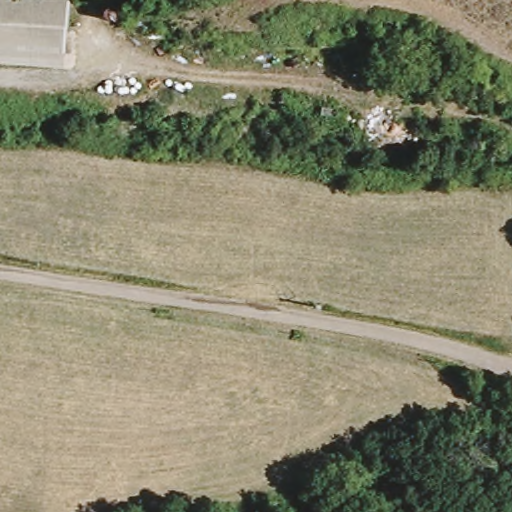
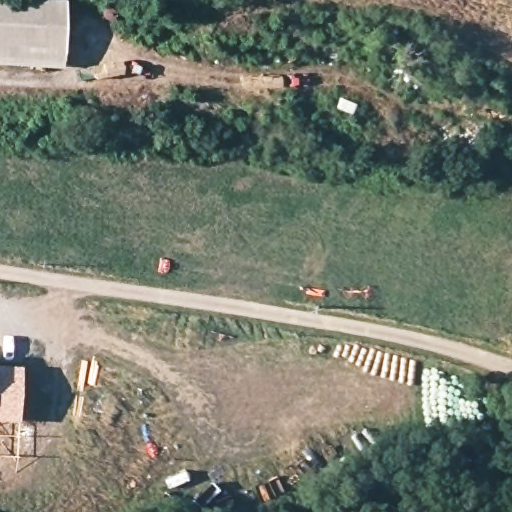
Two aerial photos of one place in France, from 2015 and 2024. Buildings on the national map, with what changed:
unchanged [(65,66),(0,63),(0,0),(52,0),(69,1),(65,66)]
new [(22,422),(0,421),(0,361),(23,367),(22,422)]

